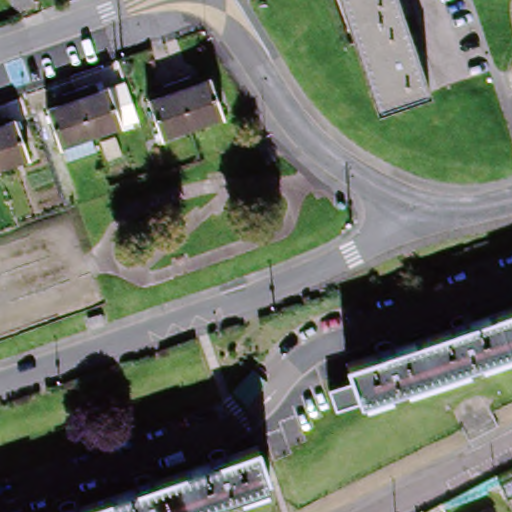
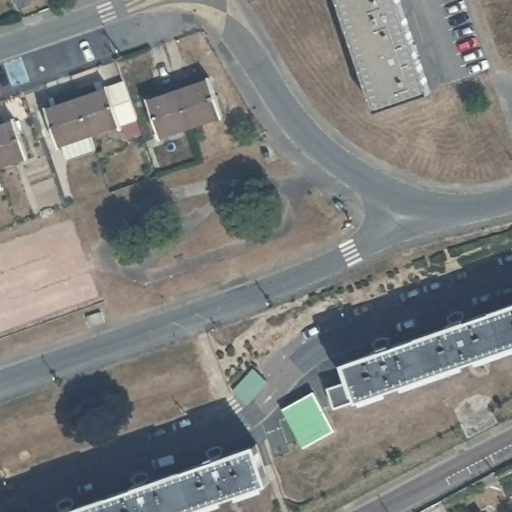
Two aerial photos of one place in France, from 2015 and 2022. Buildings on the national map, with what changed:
unchanged [(16,2),(14,0),(20,0),(16,2)]
unchanged [(432,96),(380,114),(341,0),(399,0),(432,96)]
unchanged [(162,94),(159,83),(172,77),(187,73),(191,85),(207,79),(221,116),(191,128),(159,138),(146,100),(162,94)]
unchanged [(62,146),(57,147),(44,109),(61,103),(57,92),(72,87),(83,83),(87,94),(106,88),(121,82),(134,119),(118,125),(87,136),(94,154),(67,163),(62,146)]
unchanged [(12,121),(25,158),(0,167),(0,125),(12,121)]
unchanged [(335,406),(328,387),(353,379),(347,362),(379,351),(378,348),(374,343),(378,338),(385,336),(392,337),(391,344),(392,346),(454,325),(453,322),(448,317),(453,312),(460,310),(466,311),(466,318),(467,320),(512,305),(512,345),(360,397),(335,406)]
unchanged [(108,313),(111,322),(97,327),(95,318),(108,313)]
unchanged [(273,480),(183,512),(64,512),(261,444),(273,480)]

